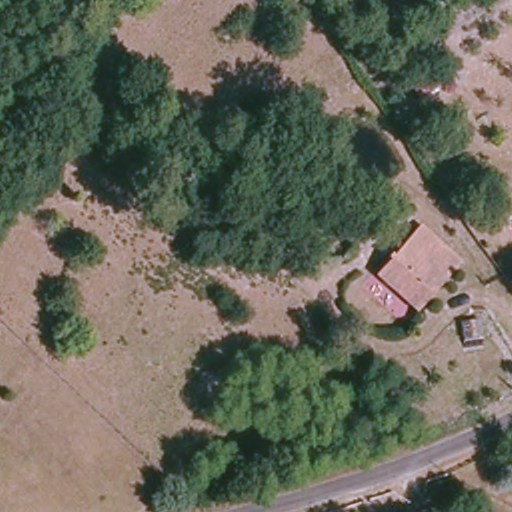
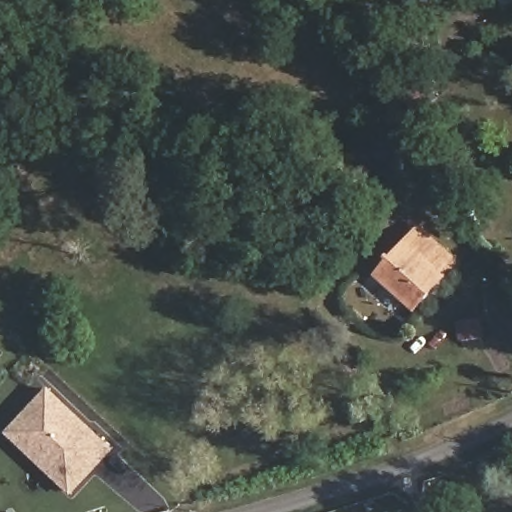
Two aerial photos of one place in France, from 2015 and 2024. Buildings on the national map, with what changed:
unchanged [(416,77),(429,68),(440,85),(427,94),(416,77)]
unchanged [(445,281),(405,239),(421,223),(460,265),(445,281)]
unchanged [(414,313),(374,270),(405,239),(445,281),(414,313)]
new [(72,496),(6,433),(50,386),(116,449),(72,496)]

